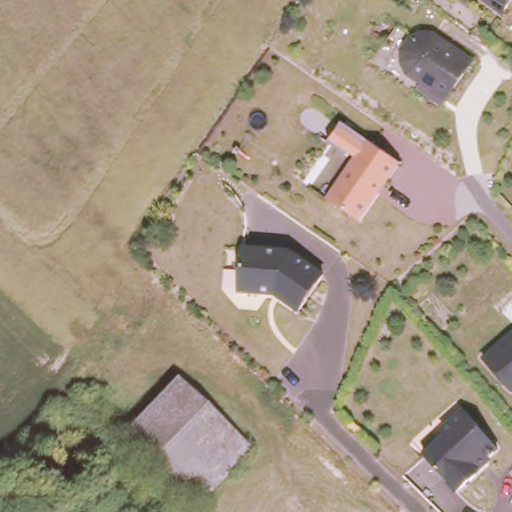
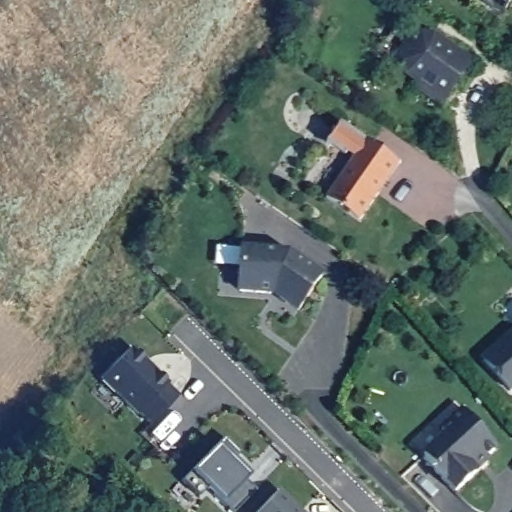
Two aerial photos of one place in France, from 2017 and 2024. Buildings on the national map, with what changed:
unchanged [(490,0),(510,0),(504,10),(490,0)]
unchanged [(404,70),(401,58),(404,42),(413,32),(424,28),(434,29),(442,35),(474,57),(446,100),(404,70)]
unchanged [(356,154),(329,137),(340,120),(400,159),(365,218),(331,195),(356,154)]
unchanged [(293,251),(326,274),(301,309),(278,293),(243,290),(246,247),(293,251)]
unchanged [(512,329),(512,387),(482,356),(512,329)]
new [(168,380),(166,382),(179,395),(153,422),(141,411),(139,413),(102,375),(133,345),(168,380)]
unchanged [(466,410),(496,439),(484,452),(489,460),(461,485),(427,452),(466,410)]
new [(207,486),(198,495),(182,479),(225,436),(241,451),(233,458),(249,475),(246,478),(258,490),(236,512),(233,512),(207,486)]
new [(253,471),(249,475),(233,458),(236,455),(253,471)]
new [(280,489),(304,512),(259,512),(280,489)]

